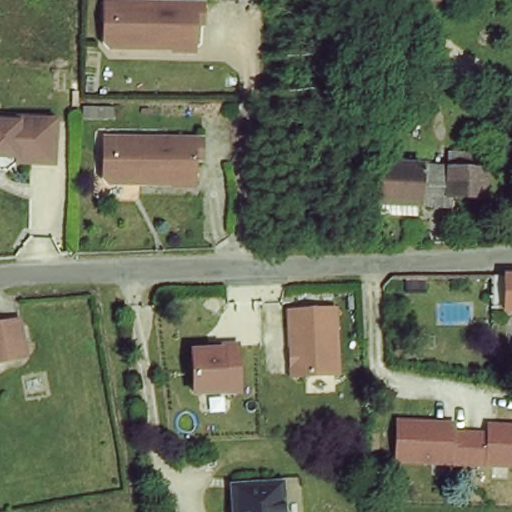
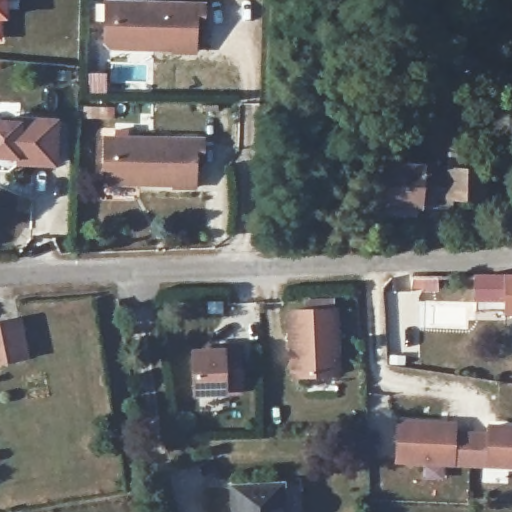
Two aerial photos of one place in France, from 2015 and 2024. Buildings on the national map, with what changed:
new [(8,19),(3,19),(4,44),(0,44),(0,0),(8,0),(8,19)]
unchanged [(106,42),(98,37),(98,16),(99,0),(196,0),(196,19),(188,18),(188,46),(167,46),(167,42),(133,42),(124,42),(106,42)]
unchanged [(0,162),(0,115),(16,117),(16,114),(54,117),(52,159),(14,155),(6,162),(0,162)]
unchanged [(102,184),(98,178),(99,160),(99,140),(107,140),(197,145),(196,163),(189,162),(187,190),(166,189),(166,186),(132,185),(125,185),(102,184)]
unchanged [(447,153),(484,155),(483,172),(482,200),(447,197),(446,207),(423,205),(422,219),(380,216),(383,166),(447,170),(447,153)]
unchanged [(512,319),(505,319),(505,275),(512,275),(512,319)]
unchanged [(338,306),(341,377),(288,379),(287,308),(338,306)]
unchanged [(13,315),(21,350),(0,354),(0,317),(13,315)]
unchanged [(210,348),(209,341),(244,340),(244,394),(191,397),(191,349),(210,348)]
unchanged [(457,427),(487,427),(487,422),(512,423),(512,468),(394,463),(395,418),(457,420),(457,427)]
unchanged [(283,512),(235,512),(236,483),(283,485),(283,512)]

